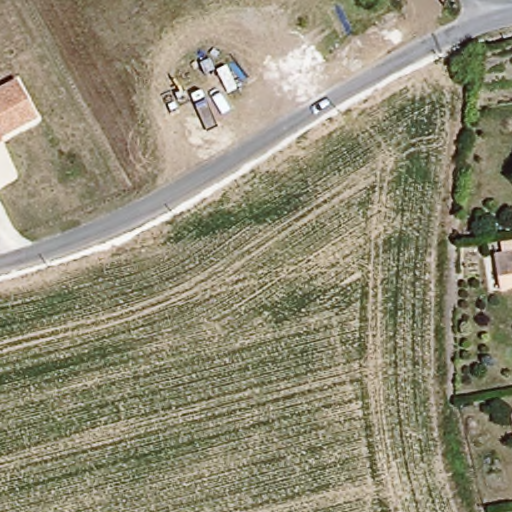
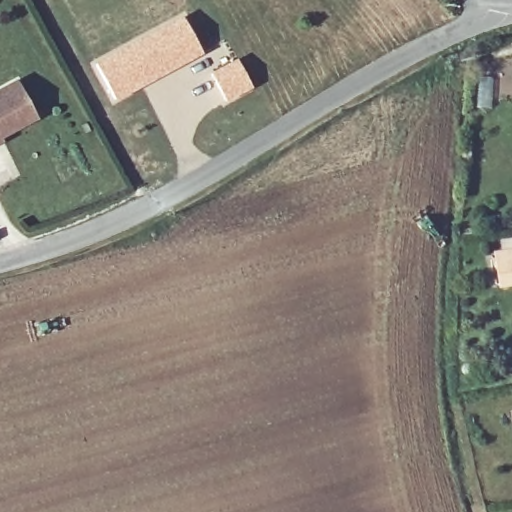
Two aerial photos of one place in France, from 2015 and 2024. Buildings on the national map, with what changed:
new [(182,13),(204,52),(116,100),(94,60),(182,13)]
new [(236,57),(253,87),(227,102),(211,71),(236,57)]
unchanged [(38,118),(1,137),(3,144),(0,145),(0,87),(16,79),(38,118)]
unchanged [(493,262),(512,258),(512,287),(499,290),(493,262)]

